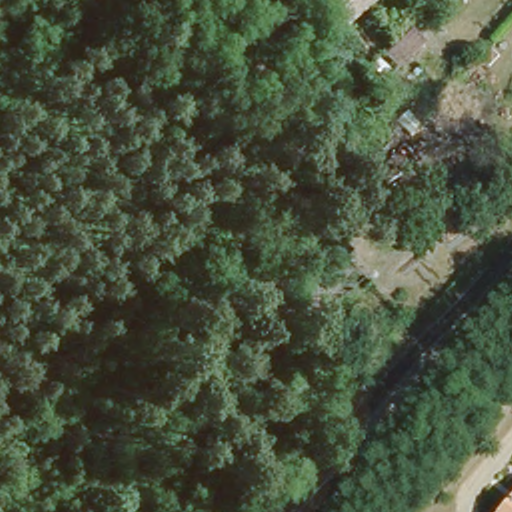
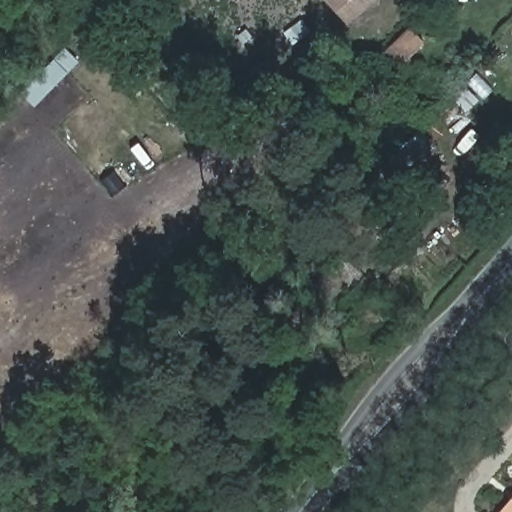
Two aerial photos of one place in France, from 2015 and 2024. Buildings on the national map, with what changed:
unchanged [(357,0),(362,0),(359,2),(357,0)]
unchanged [(424,39),(401,60),(387,45),(405,22),(424,39)]
unchanged [(512,495),(512,512),(496,512),(512,495)]

